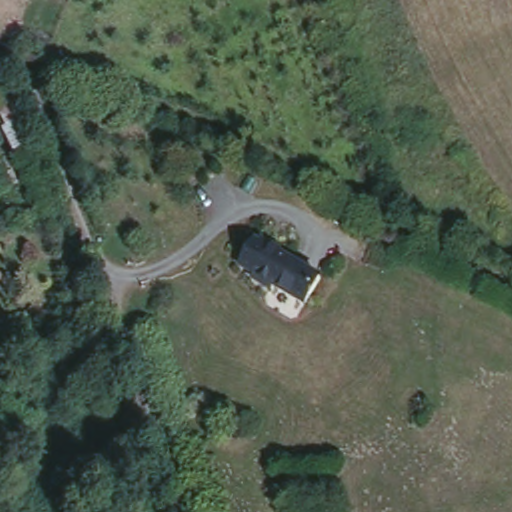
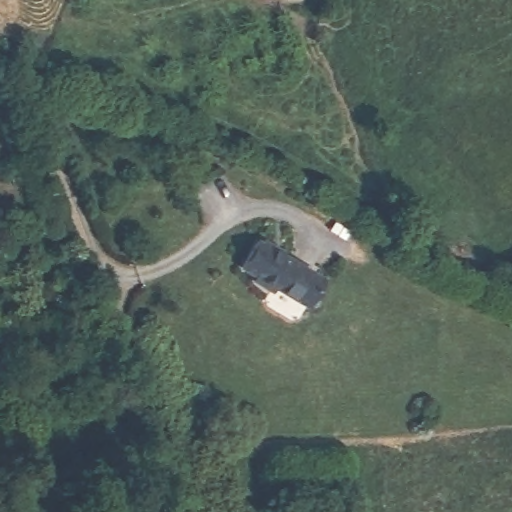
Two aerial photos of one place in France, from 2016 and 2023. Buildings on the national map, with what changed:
unchanged [(7,170),(0,145),(0,136),(5,135),(0,117),(0,88),(10,84),(33,163),(36,174),(10,182),(7,170)]
unchanged [(262,234),(267,237),(268,234),(280,242),(279,244),(286,249),(327,274),(315,294),(307,297),(280,280),(277,285),(276,284),(259,274),(262,269),(247,260),(262,234)]

